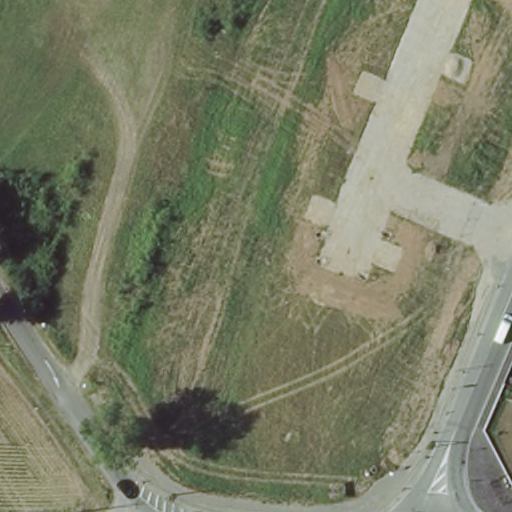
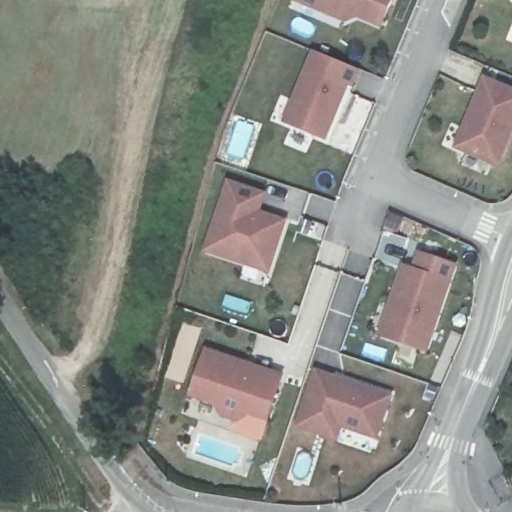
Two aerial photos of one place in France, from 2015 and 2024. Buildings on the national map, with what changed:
unchanged [(356,12),(344,17),(303,0),(389,0),(380,23),(356,12)]
new [(356,66),(349,83),(345,81),(323,135),(284,119),(313,48),(356,66)]
new [(512,89),(512,121),(496,161),(457,145),(464,127),(468,129),(471,121),(467,120),(484,78),(512,89)]
new [(261,192),(256,210),(283,219),(265,269),(205,248),(228,181),(261,192)]
new [(451,264),(424,348),(379,333),(402,266),(412,270),(418,253),(451,264)]
new [(286,373),(269,424),(246,417),(236,424),(218,417),(215,407),(188,398),(204,346),(286,373)]
new [(387,395),(374,435),(339,423),(335,437),(297,423),(315,371),(387,395)]

